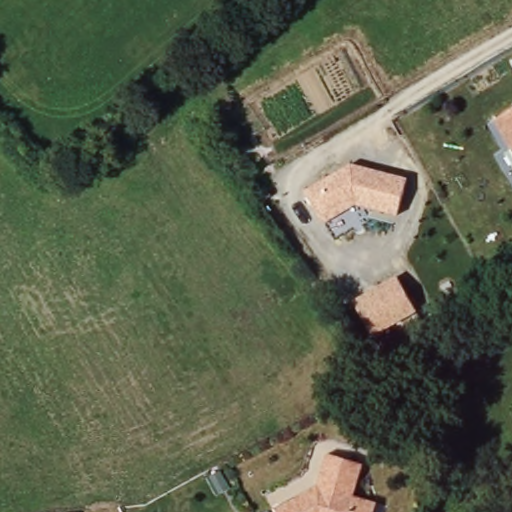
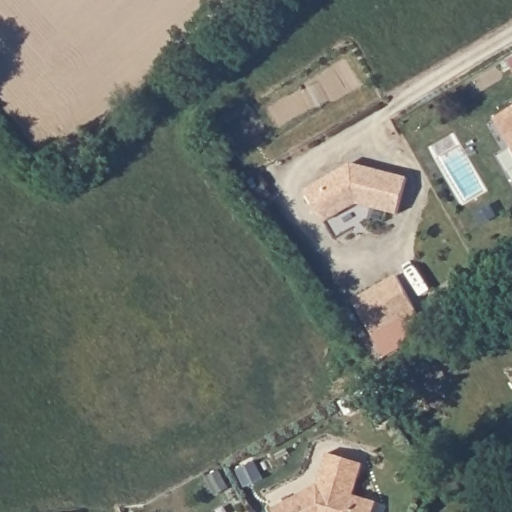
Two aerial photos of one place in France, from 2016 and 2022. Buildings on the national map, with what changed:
unchanged [(497,136),(512,126),(512,160),(497,136)]
unchanged [(397,215),(356,207),(322,224),(306,188),(348,164),(406,178),(397,215)]
unchanged [(415,314),(365,335),(351,299),(395,281),(415,314)]
unchanged [(374,512),(275,512),(274,508),(319,487),(328,453),(362,462),(355,497),(376,503),(374,512)]

